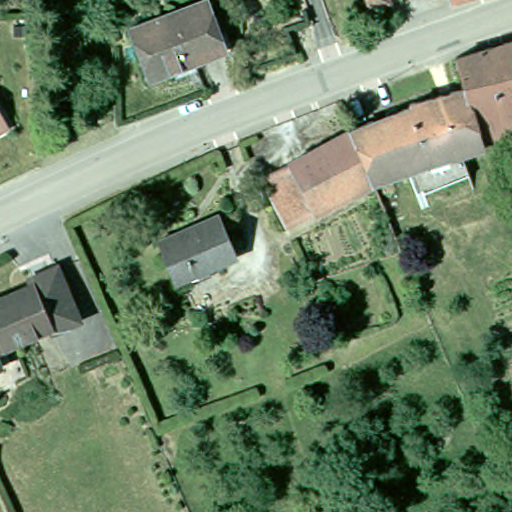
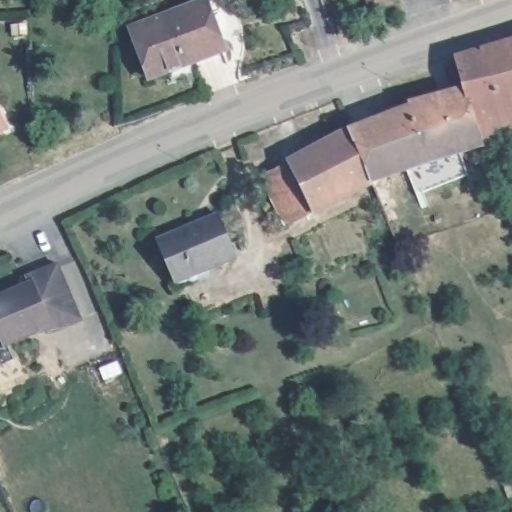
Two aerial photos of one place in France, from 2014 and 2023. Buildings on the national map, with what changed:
unchanged [(202,0),(222,49),(190,60),(193,69),(168,79),(165,70),(145,77),(127,29),(202,0)]
unchanged [(362,0),(384,0),(385,1),(365,8),(362,0)]
unchanged [(449,53),(512,34),(512,123),(474,134),(458,82),(449,53)]
unchanged [(419,92),(458,82),(474,134),(477,146),(371,179),(344,125),(419,92)]
unchanged [(12,125),(0,132),(0,104),(12,125)]
unchanged [(284,221),(257,170),(344,125),(371,179),(284,221)]
unchanged [(215,210),(232,249),(172,274),(155,236),(215,210)]
unchanged [(34,283),(30,277),(59,264),(81,318),(54,329),(52,326),(0,348),(0,297),(34,283)]
unchanged [(2,365),(0,366),(0,362),(2,365)]

